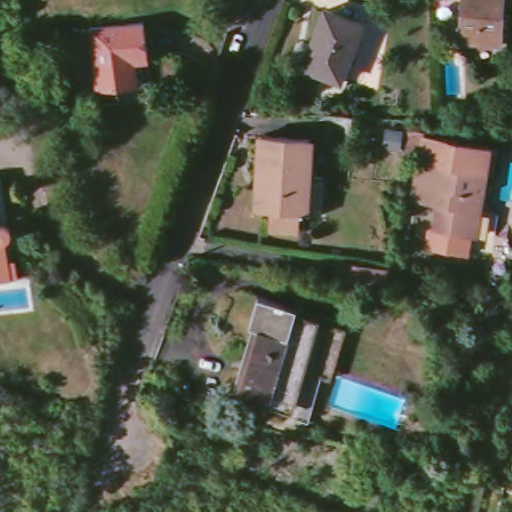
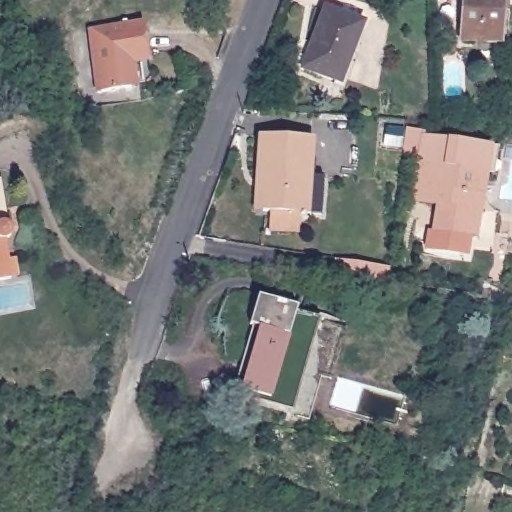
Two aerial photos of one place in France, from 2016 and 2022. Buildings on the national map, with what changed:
unchanged [(465,41),(466,0),(505,0),(503,43),(465,41)]
unchanged [(306,69),(327,9),(366,23),(344,83),(306,69)]
unchanged [(145,22),(150,56),(130,58),(134,89),(100,92),(92,28),(145,22)]
unchanged [(431,246),(433,231),(437,227),(440,202),(415,198),(417,184),(422,157),(422,151),(403,149),(407,125),(425,128),(425,131),(492,141),(489,167),(479,233),(476,252),(431,246)]
unchanged [(247,211),(250,179),(256,179),(258,134),(303,138),(301,176),(315,176),(313,214),(293,213),(292,233),(261,232),(262,211),(247,211)]
unchanged [(0,281),(0,179),(7,220),(9,221),(12,224),(13,227),(14,234),(13,236),(12,238),(10,240),(8,243),(7,244),(5,244),(11,279),(0,281)]
unchanged [(368,287),(334,281),(337,260),(387,268),(383,289),(368,287)]
unchanged [(298,306),(321,319),(348,326),(330,378),(320,375),(307,416),(295,413),(272,400),(240,387),(256,327),(246,325),(257,294),(298,306)]

